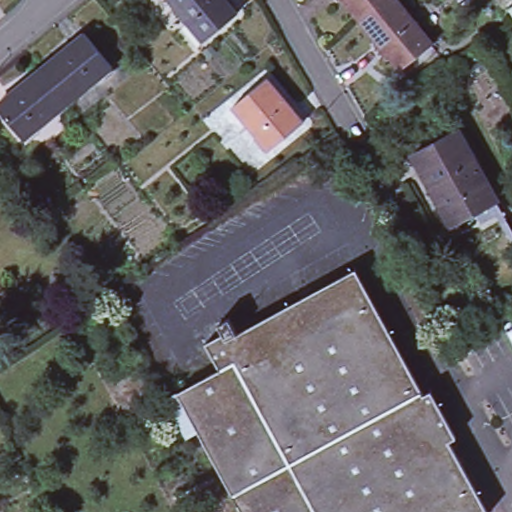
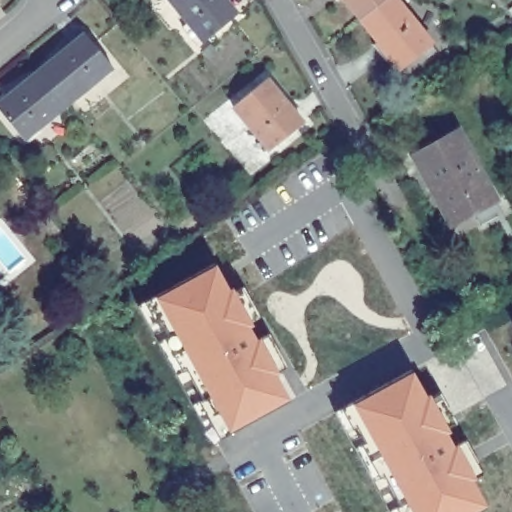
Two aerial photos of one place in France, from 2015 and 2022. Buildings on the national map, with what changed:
unchanged [(195,45),(179,25),(185,20),(168,0),(226,0),(235,11),(195,45)]
demolished [(428,42),(395,69),(383,55),(378,59),(365,42),(371,37),(355,16),(375,0),(394,0),(396,2),(428,42)]
unchanged [(40,70),(83,34),(110,67),(67,103),(40,70)]
unchanged [(267,155),(232,110),(220,95),(257,67),(268,81),(304,126),(267,155)]
unchanged [(0,109),(0,102),(40,70),(67,103),(24,139),(0,109)]
unchanged [(453,130),(490,197),(447,222),(431,195),(433,195),(420,170),(418,171),(408,155),(453,130)]
demolished [(336,278),(351,270),(420,395),(428,391),(454,438),(446,442),(486,512),(463,512),(336,278)]
demolished [(306,295),(336,278),(463,512),(425,512),(306,295)]
demolished [(425,512),(311,512),(230,365),(215,372),(201,346),(218,336),(213,326),(225,320),(232,335),(306,295),(425,512)]
demolished [(172,395),(215,372),(230,365),(311,512),(236,512),(172,395)]

